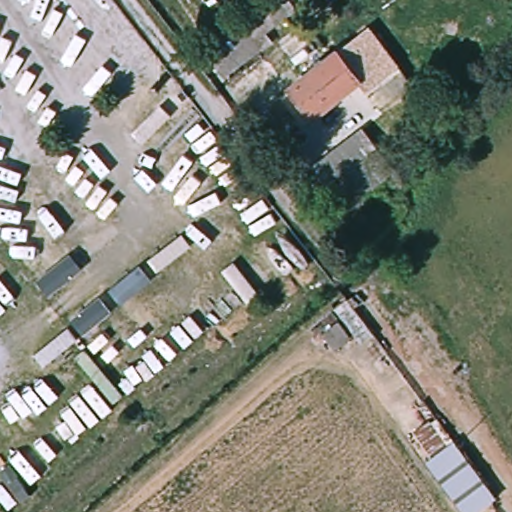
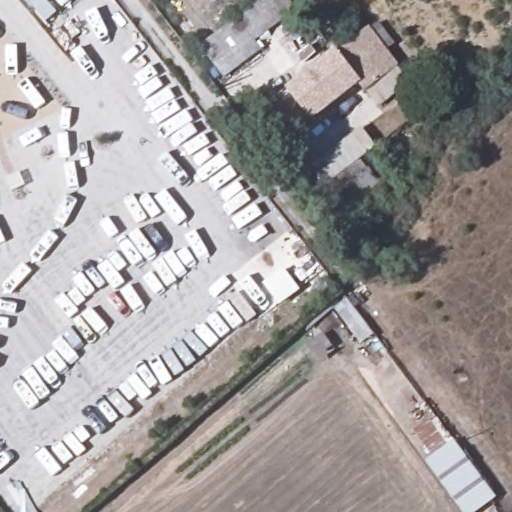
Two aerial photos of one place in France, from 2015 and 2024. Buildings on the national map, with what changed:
unchanged [(190,46),(253,0),(281,0),(287,9),(246,39),(252,49),(214,77),(190,46)]
unchanged [(365,87),(357,77),(313,112),(292,83),(369,22),(398,61),(365,87)]
unchanged [(311,167),(362,129),(377,147),(332,182),(326,187),(311,167)]
unchanged [(380,184),(365,196),(353,182),(341,192),(332,182),(377,147),(396,171),(409,186),(398,194),(391,198),(380,184)]
unchanged [(335,308),(348,299),(375,332),(360,342),(335,308)]
unchanged [(462,512),(427,466),(433,460),(417,436),(431,425),(433,427),(437,424),(496,502),(483,512),(462,512)]

